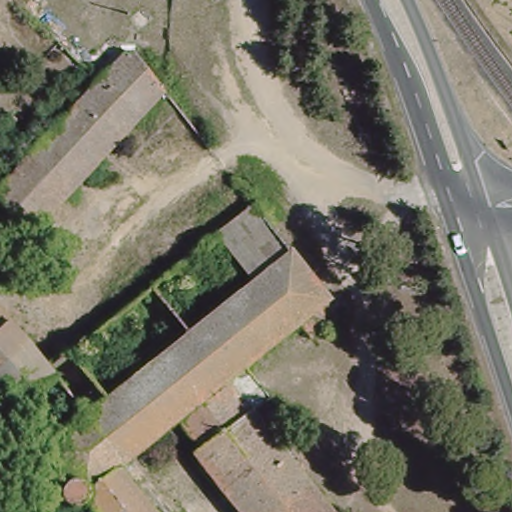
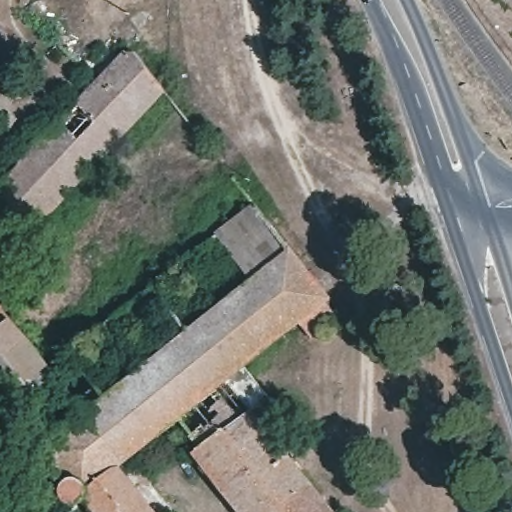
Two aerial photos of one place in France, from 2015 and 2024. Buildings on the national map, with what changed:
unchanged [(165,91),(166,93),(110,149),(75,110),(135,49),(165,91)]
unchanged [(2,259),(0,256),(0,186),(75,110),(110,149),(2,259)]
unchanged [(250,199),(292,249),(257,278),(220,228),(250,199)]
unchanged [(65,464),(50,444),(92,408),(56,364),(50,358),(93,326),(135,375),(257,278),(292,249),(326,295),(322,299),(335,316),(308,336),(295,319),(240,364),(176,414),(117,461),(83,491),(77,494),(67,499),(60,497),(54,491),(52,484),(54,474),(59,467),(65,464)]
unchanged [(56,364),(13,399),(0,384),(0,301),(50,358),(56,364)]
unchanged [(263,392),(199,444),(176,414),(240,364),(263,392)]
unchanged [(199,444),(263,392),(282,414),(268,429),(337,511),(335,512),(244,512),(194,449),(199,444)]
unchanged [(117,461),(156,512),(97,512),(83,491),(117,461)]

